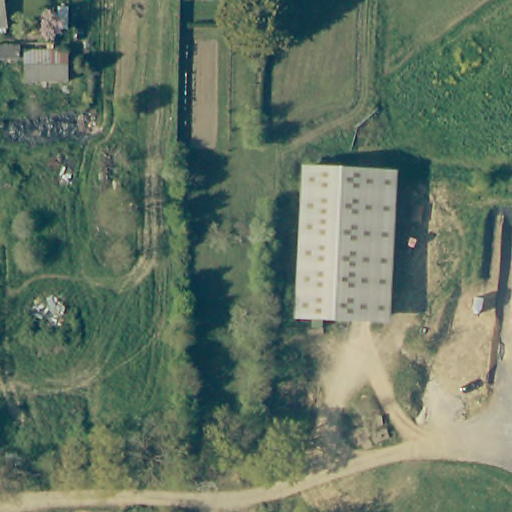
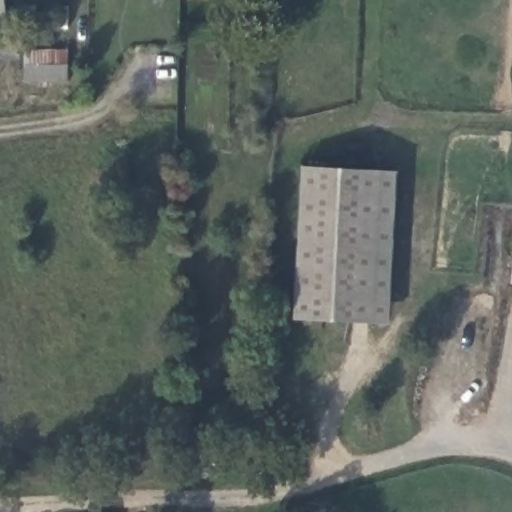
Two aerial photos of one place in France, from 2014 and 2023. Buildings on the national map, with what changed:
unchanged [(0,25),(0,0),(3,0),(6,24),(0,25)]
unchanged [(261,44),(247,44),(247,18),(262,19),(261,44)]
unchanged [(23,45),(24,59),(2,59),(2,46),(23,45)]
unchanged [(71,53),(72,84),(29,83),(28,53),(71,53)]
unchanged [(390,323),(299,318),(304,169),(398,173),(390,323)]

